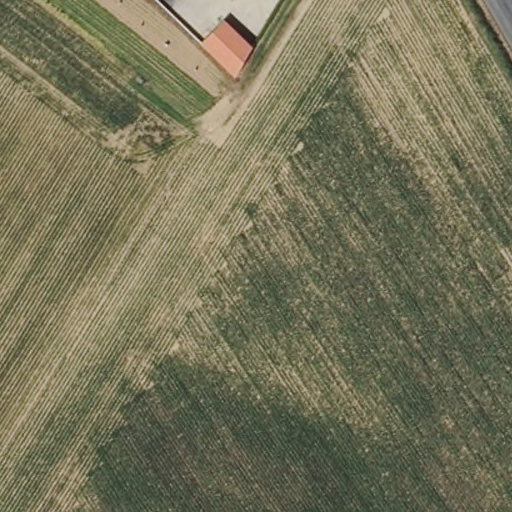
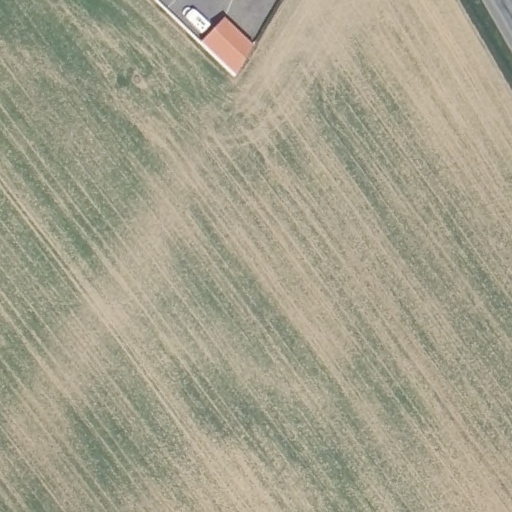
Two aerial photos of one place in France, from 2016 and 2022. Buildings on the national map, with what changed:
unchanged [(230,1),(230,0),(232,0),(230,1)]
unchanged [(228,20),(258,49),(240,77),(206,44),(228,20)]

